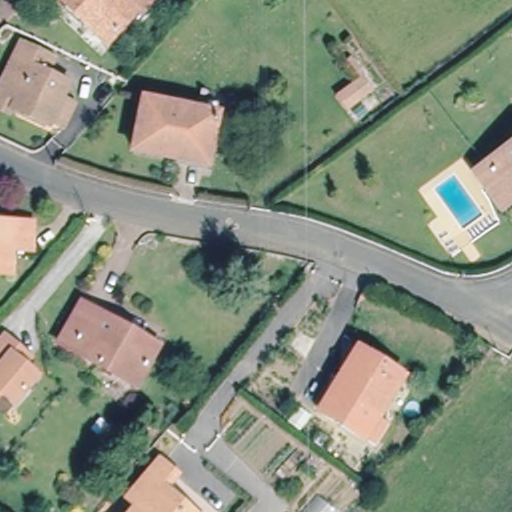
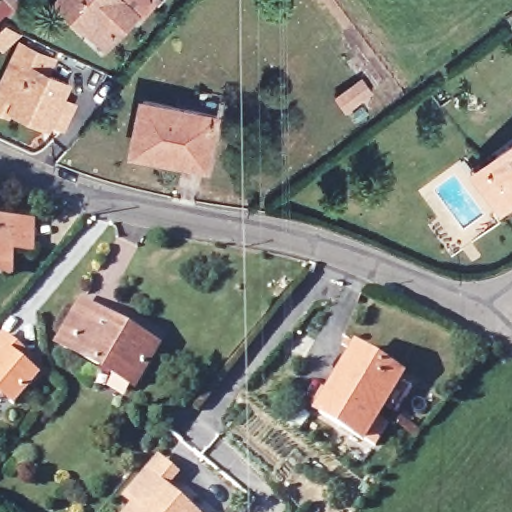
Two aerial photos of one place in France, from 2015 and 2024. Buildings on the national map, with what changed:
unchanged [(56,0),(150,0),(136,15),(132,11),(110,34),(101,44),(91,34),(56,0)]
unchanged [(21,37),(52,52),(45,66),(67,77),(60,91),(72,97),(62,119),(50,113),(47,119),(11,101),(9,106),(0,102),(0,80),(21,37)]
unchanged [(362,78),(372,91),(347,109),(337,96),(362,78)]
unchanged [(218,114),(208,167),(134,153),(145,99),(218,114)]
unchanged [(483,167),(512,146),(512,202),(510,204),(501,210),(474,174),(483,167)]
unchanged [(33,220),(32,246),(12,245),(12,270),(0,270),(0,220),(33,220)]
unchanged [(157,347),(136,387),(60,345),(82,306),(157,347)]
unchanged [(8,327),(21,338),(34,350),(27,356),(41,368),(17,396),(3,385),(0,388),(0,337),(8,327)]
unchanged [(373,441),(362,433),(360,435),(316,407),(307,402),(317,386),(326,391),(355,346),(398,374),(373,415),(385,422),(373,441)]
unchanged [(177,476),(165,491),(190,512),(132,512),(125,506),(161,463),(177,476)]

